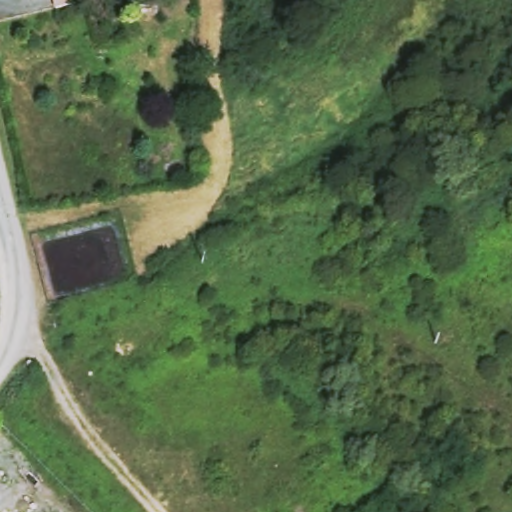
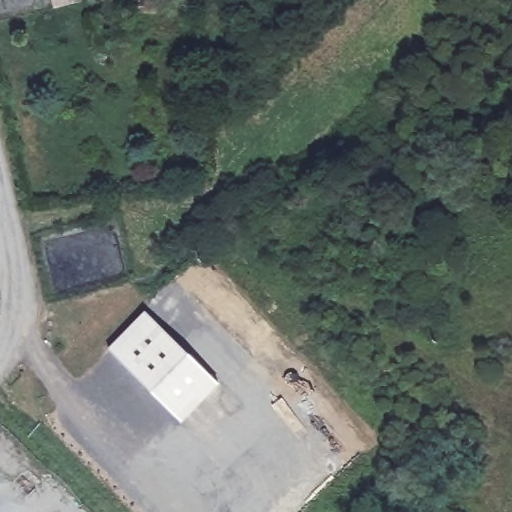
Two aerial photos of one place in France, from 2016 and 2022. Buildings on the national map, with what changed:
new [(58,5),(57,0),(79,0),(70,2),(58,5)]
new [(146,312),(221,385),(183,424),(108,351),(146,312)]

